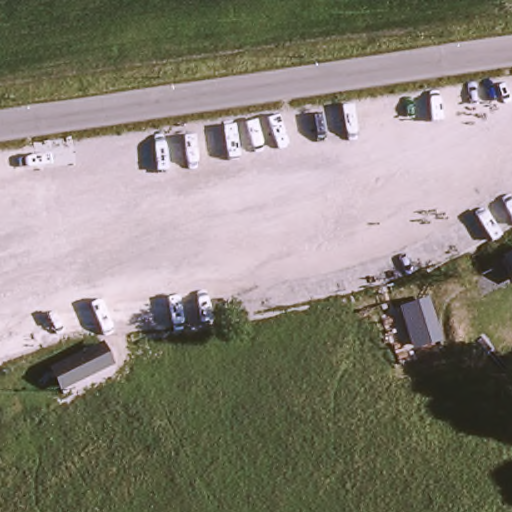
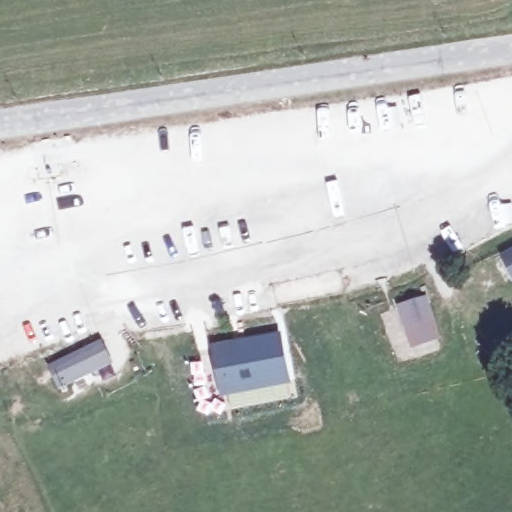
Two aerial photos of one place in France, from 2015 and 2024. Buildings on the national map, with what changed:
unchanged [(433,329),(409,337),(402,317),(426,309),(433,329)]
new [(280,331),(290,383),(218,397),(207,345),(280,331)]
unchanged [(102,343),(112,362),(65,385),(55,366),(102,343)]

